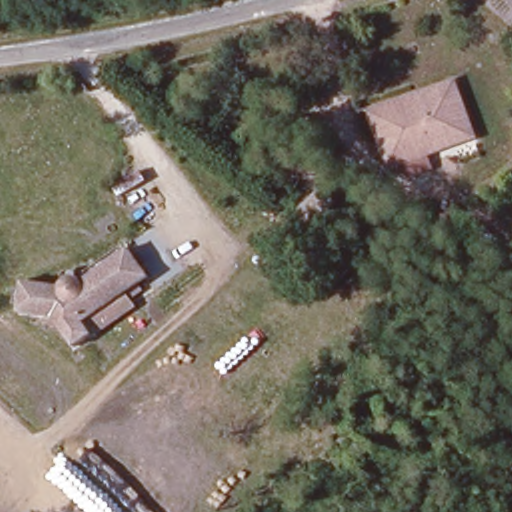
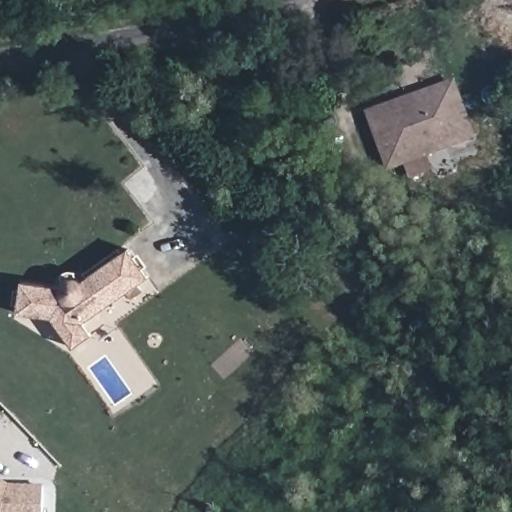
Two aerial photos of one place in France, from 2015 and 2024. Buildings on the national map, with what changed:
unchanged [(378,165),(369,114),(411,106),(456,97),(460,110),(468,152),(378,165)]
unchanged [(91,343),(75,353),(50,322),(12,313),(20,282),(53,290),(60,281),(70,277),(87,279),(121,253),(145,280),(125,296),(135,308),(91,343)]
new [(44,486),(43,512),(0,512),(0,478),(9,484),(44,486)]

